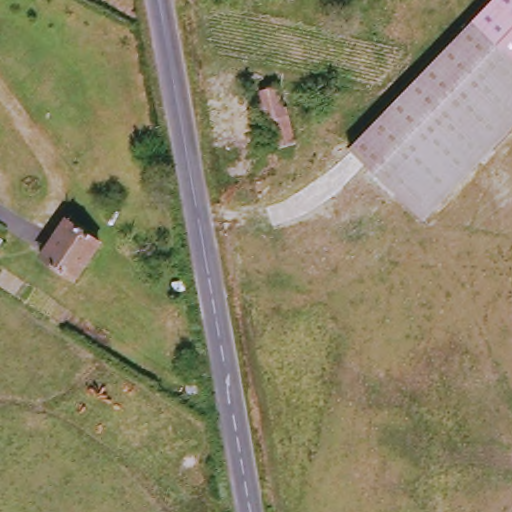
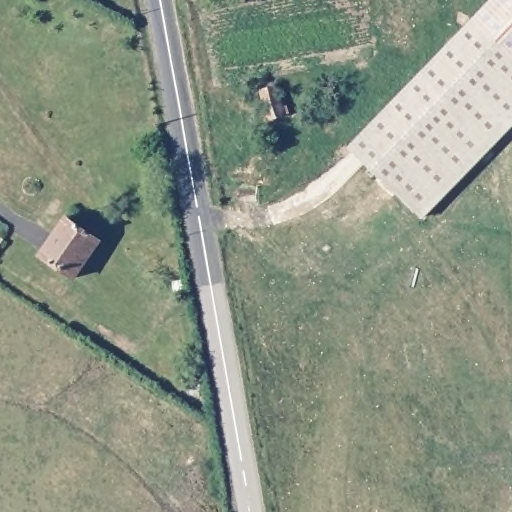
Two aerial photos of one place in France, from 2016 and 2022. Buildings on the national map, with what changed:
unchanged [(477,16),(492,0),(512,0),(512,50),(477,16)]
unchanged [(477,16),(512,50),(512,125),(427,214),(355,145),(477,16)]
unchanged [(293,140),(275,147),(265,120),(266,119),(256,91),(270,86),(281,113),(285,112),(293,140)]
unchanged [(95,241),(70,277),(40,255),(68,220),(95,241)]

